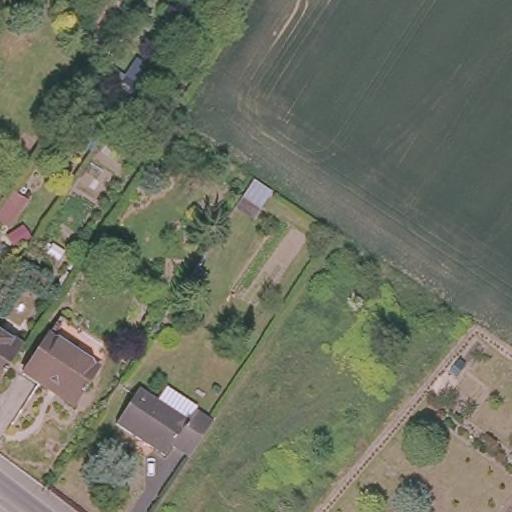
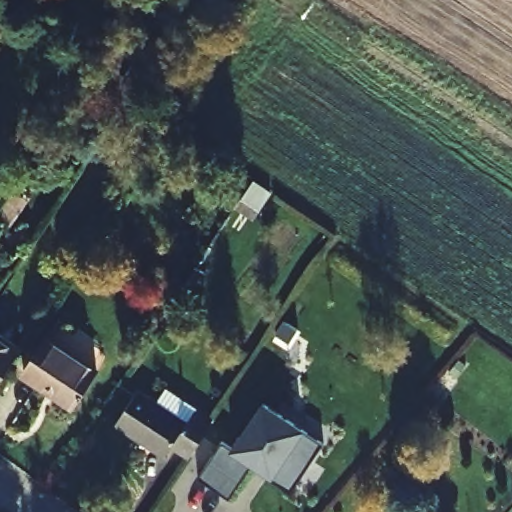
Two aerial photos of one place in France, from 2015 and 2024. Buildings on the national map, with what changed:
unchanged [(25,338),(0,376),(0,322),(25,338)]
unchanged [(94,371),(70,405),(24,372),(46,338),(94,371)]
unchanged [(221,420),(215,430),(198,455),(180,442),(170,456),(122,422),(145,389),(194,421),(203,408),(221,420)]
new [(219,444),(231,452),(260,407),(320,445),(288,492),(266,478),(270,475),(251,463),(227,500),(196,480),(219,444)]

